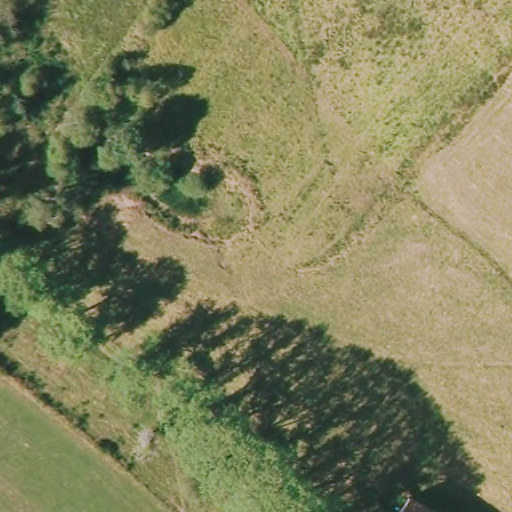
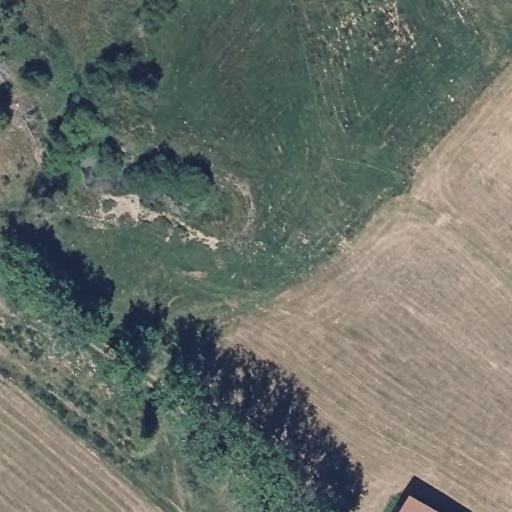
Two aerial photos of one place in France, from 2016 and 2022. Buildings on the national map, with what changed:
unchanged [(405,498),(429,512),(398,512),(405,498)]

